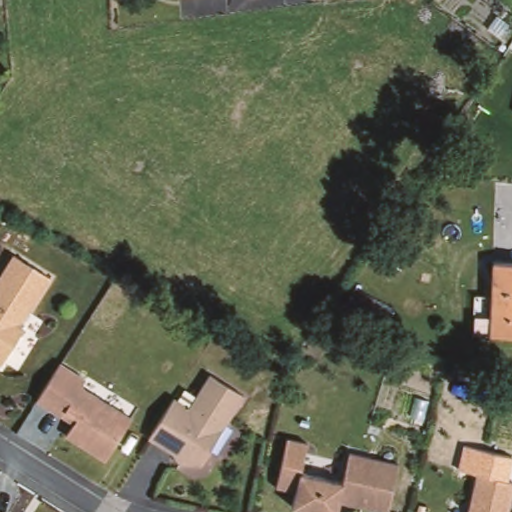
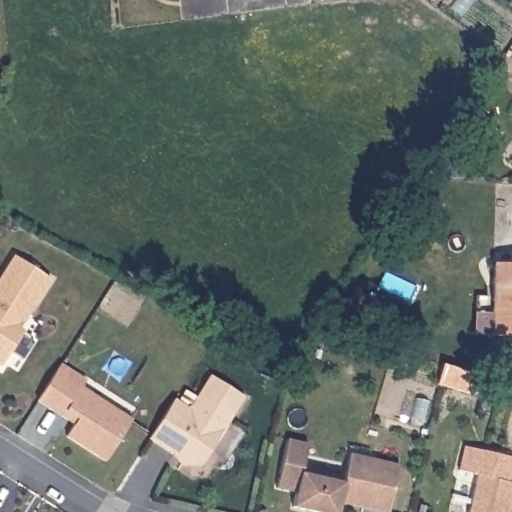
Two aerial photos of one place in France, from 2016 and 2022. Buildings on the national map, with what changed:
unchanged [(53,276),(19,327),(24,331),(4,362),(0,360),(0,279),(16,252),(53,276)]
unchanged [(489,331),(495,259),(512,260),(512,333),(489,331)]
unchanged [(64,362),(89,378),(84,387),(136,419),(110,461),(68,436),(74,424),(38,401),(64,362)]
unchanged [(179,402),(193,411),(214,377),(249,400),(205,468),(184,467),(177,457),(153,442),(153,441),(178,402),(179,402)]
unchanged [(289,436),(312,440),(304,473),(344,480),(352,450),(403,463),(392,512),(387,512),(351,503),(349,512),(308,512),(294,509),(298,488),(280,487),(289,436)]
unchanged [(476,474),(512,481),(512,512),(468,512),(476,474)]

